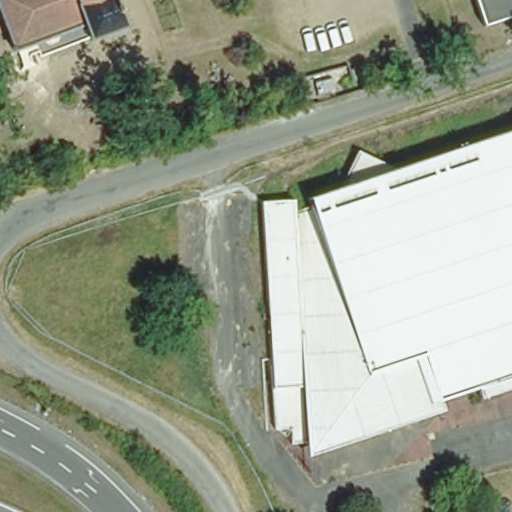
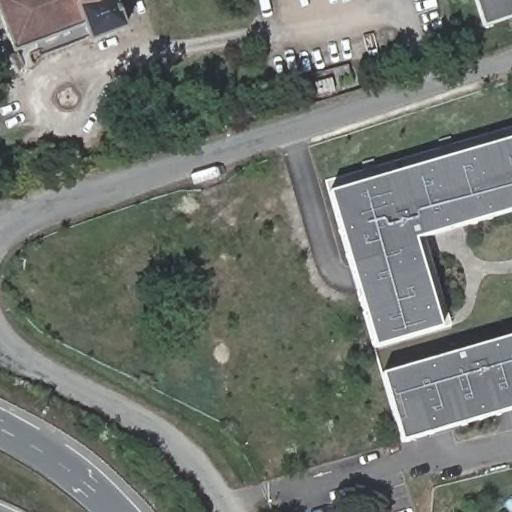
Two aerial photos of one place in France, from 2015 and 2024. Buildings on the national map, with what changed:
unchanged [(89,46),(87,43),(39,62),(34,48),(12,55),(0,20),(0,0),(111,0),(123,32),(89,46)]
unchanged [(480,0),(512,0),(512,19),(488,27),(480,0)]
unchanged [(325,97),(323,96),(322,96),(322,95),(321,95),(320,94),(320,93),(320,92),(320,91),(319,90),(319,89),(319,88),(320,87),(320,86),(320,85),(321,85),(321,84),(322,84),(322,83),(323,82),(324,82),(325,81),(326,81),(327,81),(328,81),(330,82),(331,82),(332,84),(333,84),(333,85),(334,85),(335,86),(335,87),(335,88),(335,89),(335,90),(335,91),(335,92),(334,93),(334,94),(333,94),(333,95),(332,95),(331,96),(330,96),(330,97),(329,97),(328,97),(327,97),(326,97),(325,97)]
demolished [(460,385),(419,398),(400,404),(398,405),(399,416),(290,422),(290,438),(273,439),(273,434),(263,424),(257,424),(246,197),(280,196),(280,209),(298,202),(296,195),(322,186),(341,148),(382,166),(493,130),(512,92),(512,379),(463,395),(460,385)]
new [(440,329),(374,349),(329,193),(512,140),(512,212),(415,240),(440,329)]
new [(512,337),(512,410),(402,441),(382,375),(512,337)]

